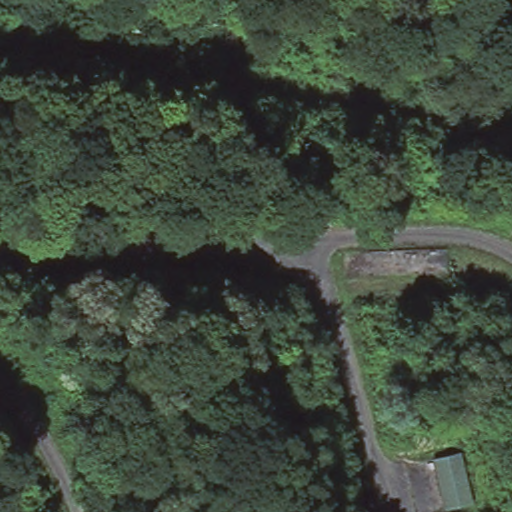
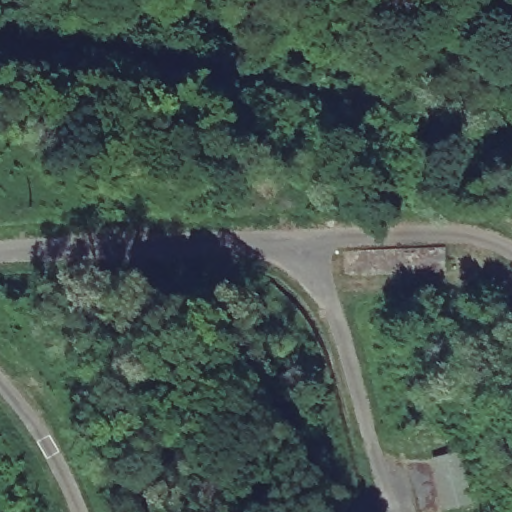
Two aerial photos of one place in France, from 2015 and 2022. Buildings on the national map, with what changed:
unchanged [(477,505),(443,510),(425,454),(460,448),(477,505)]

